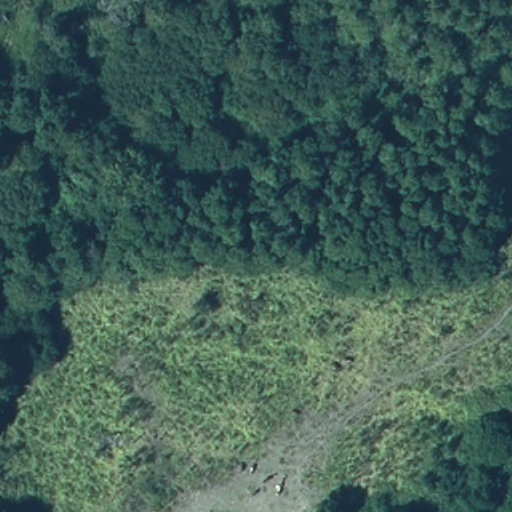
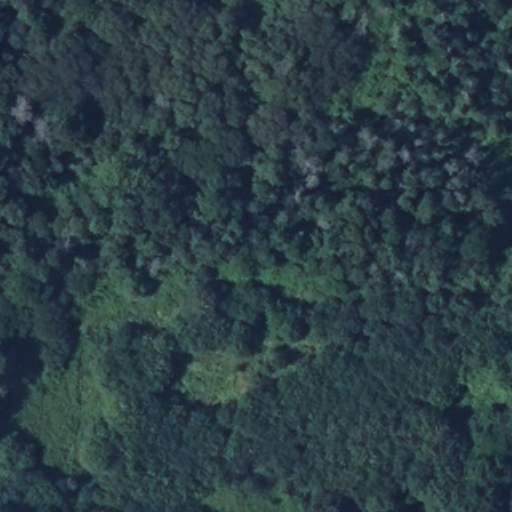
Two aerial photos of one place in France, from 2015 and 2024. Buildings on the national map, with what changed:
[]

